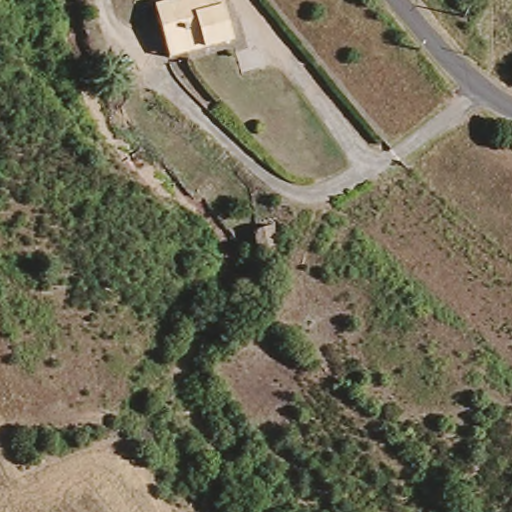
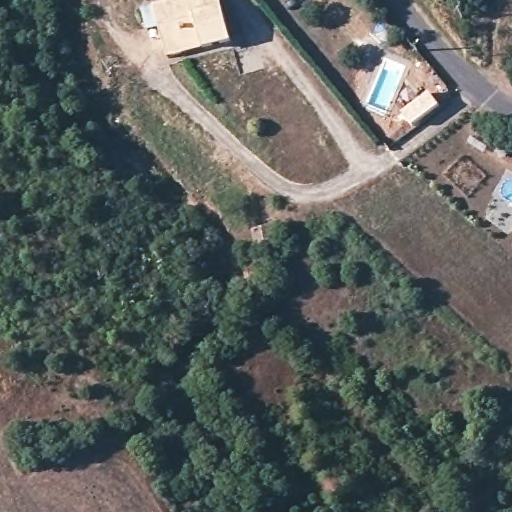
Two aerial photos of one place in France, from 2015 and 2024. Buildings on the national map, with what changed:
unchanged [(157,15),(208,0),(221,0),(224,10),(234,46),(205,55),(172,64),(169,54),(157,15)]
unchanged [(253,247),(252,227),(270,226),(272,246),(253,247)]

